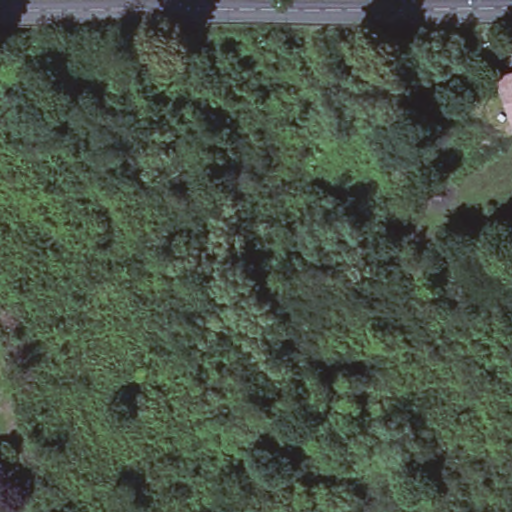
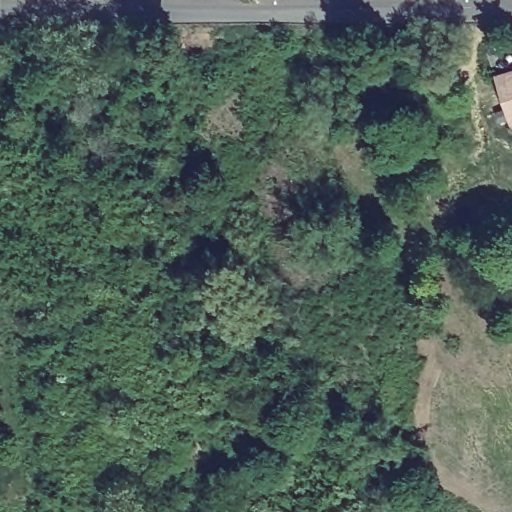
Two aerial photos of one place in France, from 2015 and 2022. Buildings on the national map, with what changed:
unchanged [(504,79),(512,76),(512,104),(504,79)]

